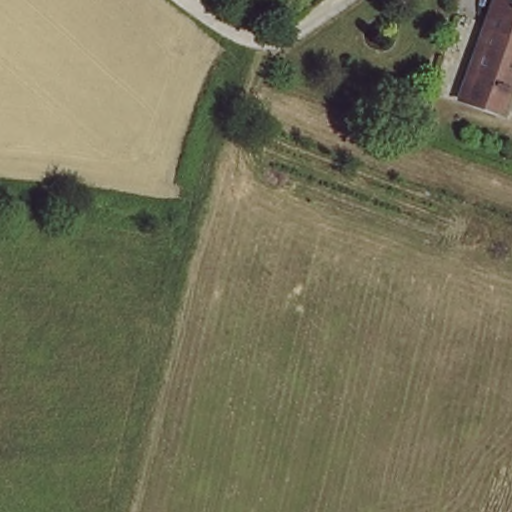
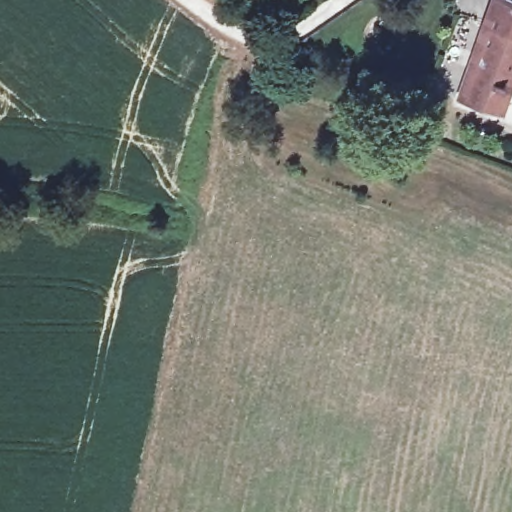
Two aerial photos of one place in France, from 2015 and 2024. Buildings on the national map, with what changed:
unchanged [(512,11),(512,88),(497,119),(455,100),(467,73),(473,75),(490,36),(484,32),(497,4),(512,11)]

